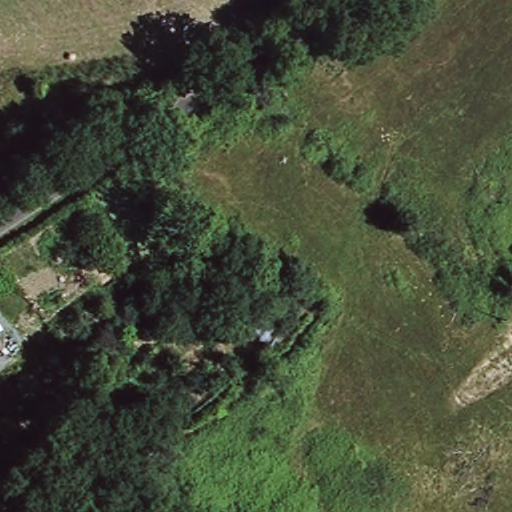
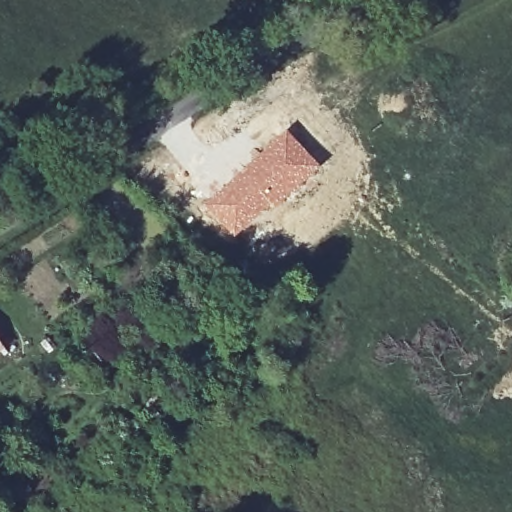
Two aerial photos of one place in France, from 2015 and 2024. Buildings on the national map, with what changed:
new [(285,129),(319,166),(284,198),(233,239),(202,204),(285,129)]
unchanged [(0,357),(0,349),(4,355),(0,357)]

